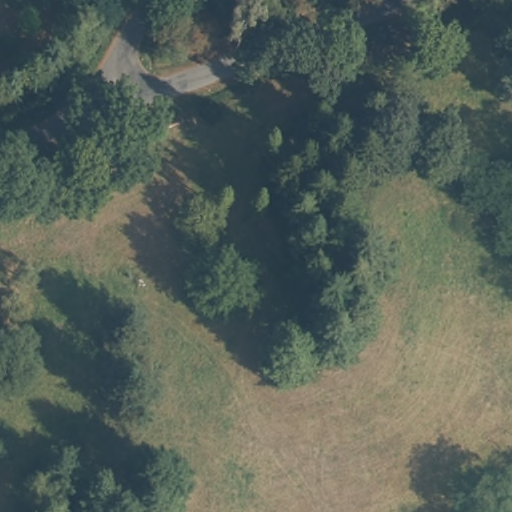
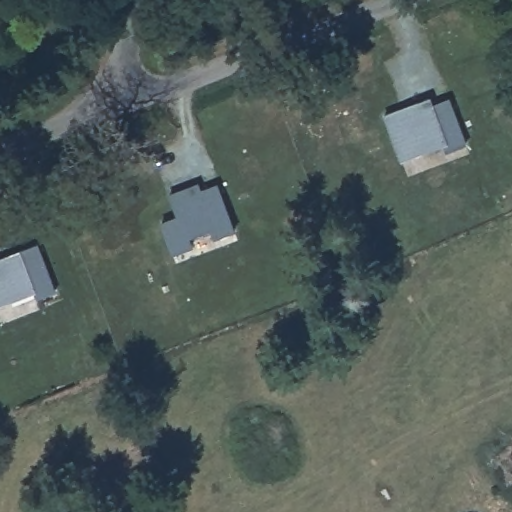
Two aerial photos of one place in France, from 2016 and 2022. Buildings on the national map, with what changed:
new [(435,101),(437,108),(453,101),(471,147),(451,154),(447,145),(425,153),(426,156),(407,163),(390,118),(435,101)]
new [(183,220),(175,197),(204,187),(207,194),(223,187),(240,233),(220,240),(217,231),(194,239),(197,249),(177,256),(167,226),(183,220)]
new [(56,293),(37,300),(34,294),(0,306),(0,259),(37,245),(56,293)]

